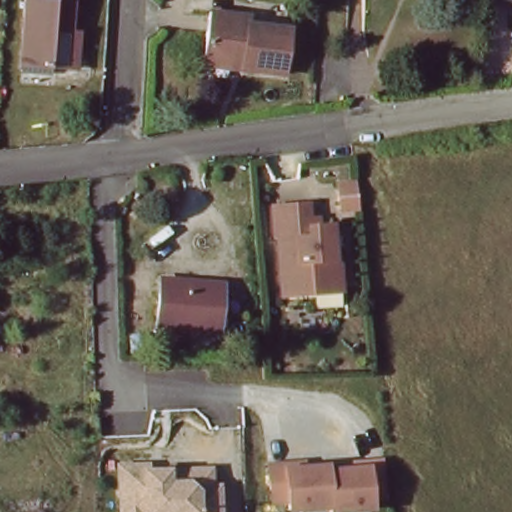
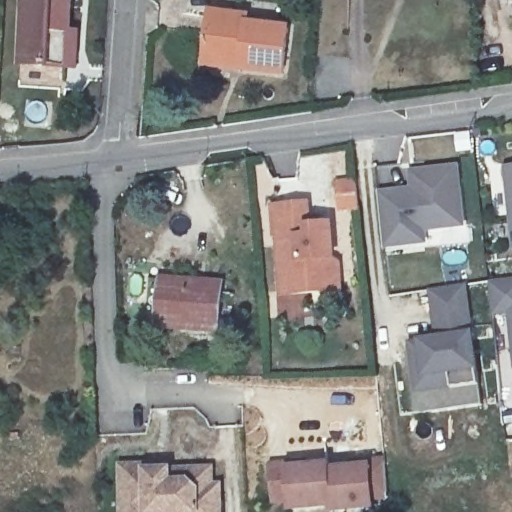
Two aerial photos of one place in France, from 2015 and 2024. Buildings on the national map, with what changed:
unchanged [(70,1),(65,67),(22,65),(27,0),(52,0),(70,1)]
unchanged [(208,53),(215,8),(255,15),(253,25),(292,33),(284,77),(245,70),(206,63),(208,53)]
new [(512,170),(512,251),(510,252),(501,172),(512,170)]
new [(400,248),(380,250),(374,197),(394,195),(409,193),(407,176),(452,171),(459,229),(419,233),(420,245),(400,248)]
unchanged [(364,195),(365,214),(348,216),(345,188),(363,186),(364,195)]
unchanged [(325,295),(283,298),(279,237),(277,238),(275,209),(309,206),(310,229),(332,228),(334,262),(340,266),(341,282),(342,294),(325,295)]
new [(489,282),(512,279),(512,355),(507,317),(492,317),(489,282)]
unchanged [(221,336),(157,332),(163,282),(225,286),(221,336)]
new [(435,338),(429,291),(466,285),(480,407),(413,415),(410,390),(415,389),(409,342),(435,338)]
new [(504,423),(502,398),(498,365),(511,363),(512,373),(512,422),(504,423)]
unchanged [(145,468),(172,468),(214,467),(214,482),(225,482),(225,512),(123,512),(121,461),(143,460),(145,468)]
unchanged [(318,476),(340,474),(340,479),(363,477),(362,472),(380,470),(397,468),(400,505),(385,507),(385,512),(302,512),(302,510),(287,512),(283,475),(300,473),(317,471),(318,476)]

